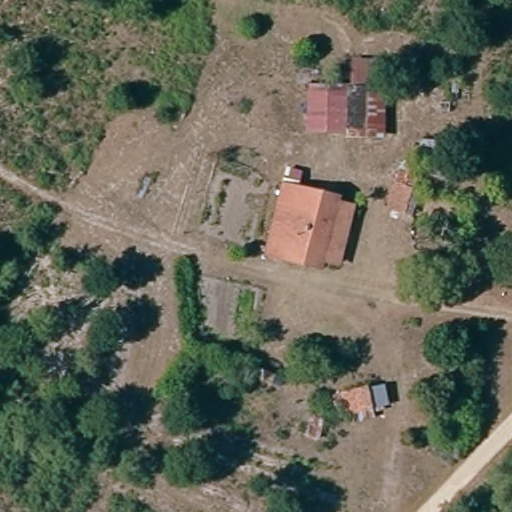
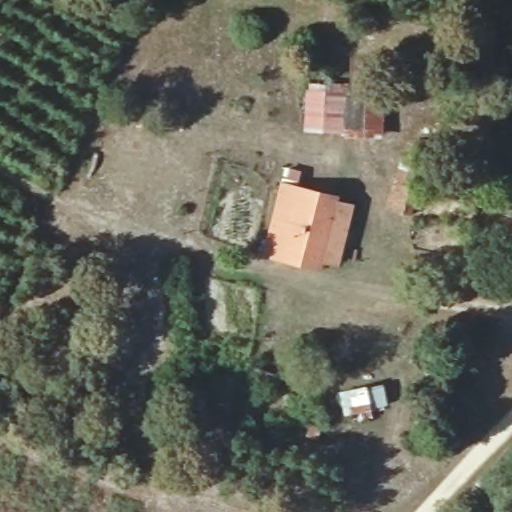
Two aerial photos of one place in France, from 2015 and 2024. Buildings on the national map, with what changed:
unchanged [(376,60),(377,84),(385,84),(383,136),(332,136),(331,132),(304,133),(303,85),(346,85),(345,59),(376,60)]
unchanged [(420,185),(402,206),(386,192),(403,171),(420,185)]
unchanged [(280,253),(260,245),(288,177),(310,186),(280,253)]
unchanged [(353,204),(326,271),(280,253),(310,186),(353,204)]
unchanged [(372,409),(357,414),(349,394),(365,389),(372,409)]

